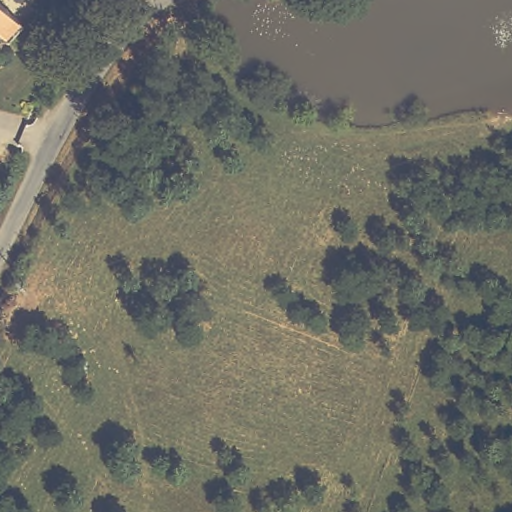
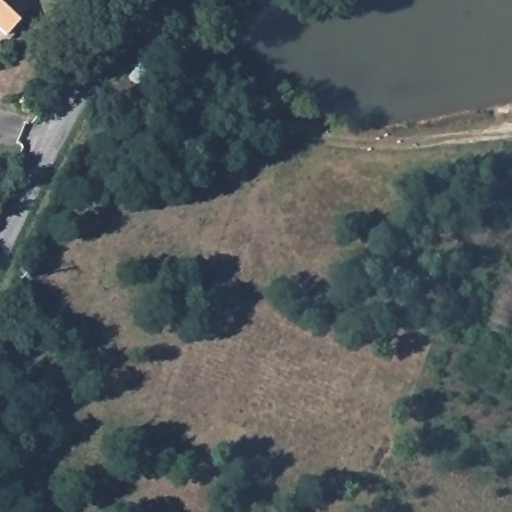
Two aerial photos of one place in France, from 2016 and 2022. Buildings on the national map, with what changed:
unchanged [(6,29),(0,24),(0,0),(11,0),(22,10),(6,29)]

